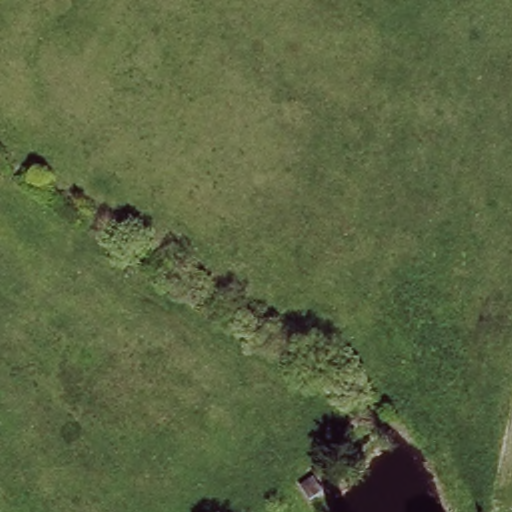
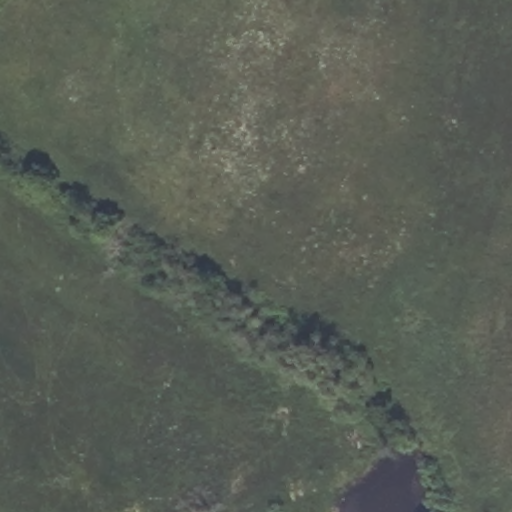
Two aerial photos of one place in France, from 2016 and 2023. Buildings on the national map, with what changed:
unchanged [(311,478),(321,492),(307,503),(297,488),(311,478)]

